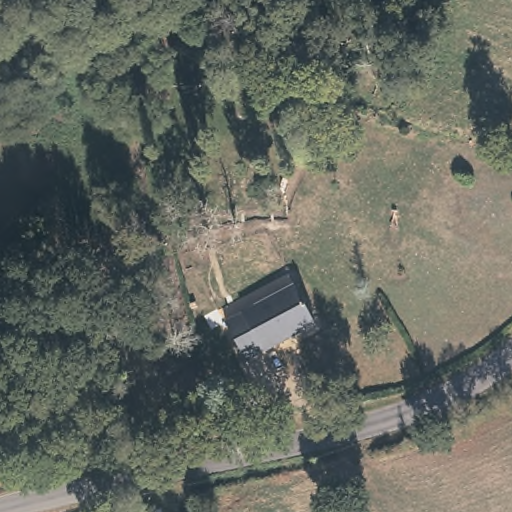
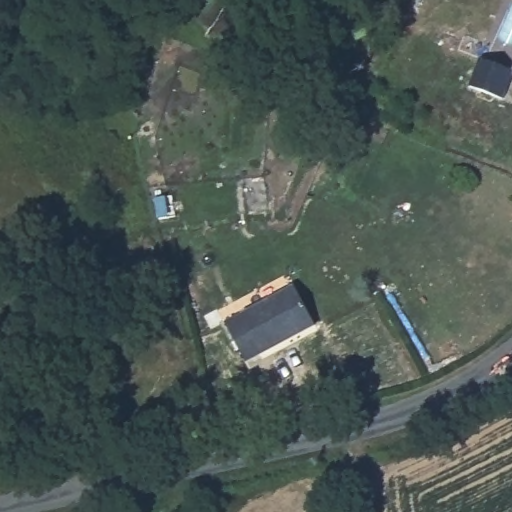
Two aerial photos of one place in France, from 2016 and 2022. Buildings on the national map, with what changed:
new [(470,87),(480,59),(512,70),(512,73),(503,98),(470,87)]
unchanged [(288,286),(313,320),(250,366),(225,331),(288,286)]

